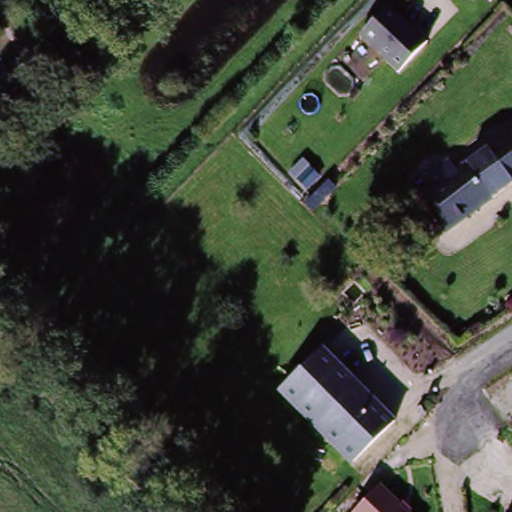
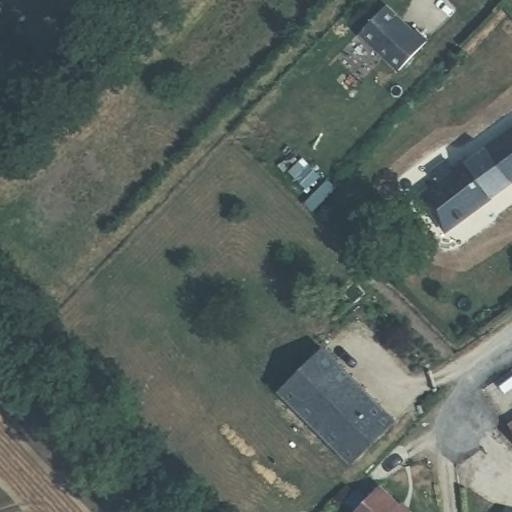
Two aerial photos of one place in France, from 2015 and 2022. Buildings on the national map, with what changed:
unchanged [(387,7),(414,34),(416,31),(427,43),(399,71),(360,34),(387,7)]
unchanged [(12,88),(0,99),(0,77),(12,88)]
unchanged [(433,172),(447,161),(455,173),(512,132),(512,185),(447,232),(422,196),(441,182),(433,172)]
unchanged [(325,346),(395,420),(351,463),(280,389),(325,346)]
unchanged [(378,484),(407,512),(350,512),(378,484)]

